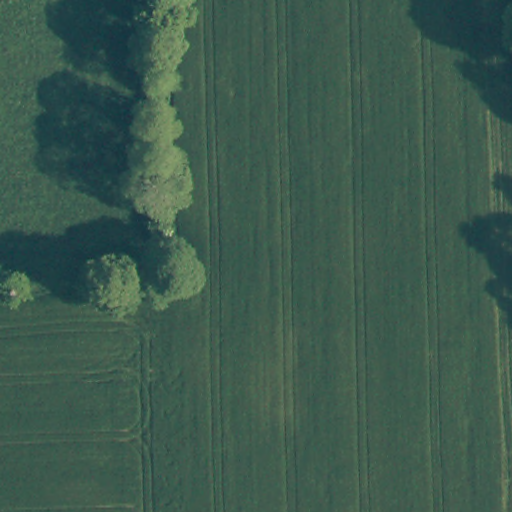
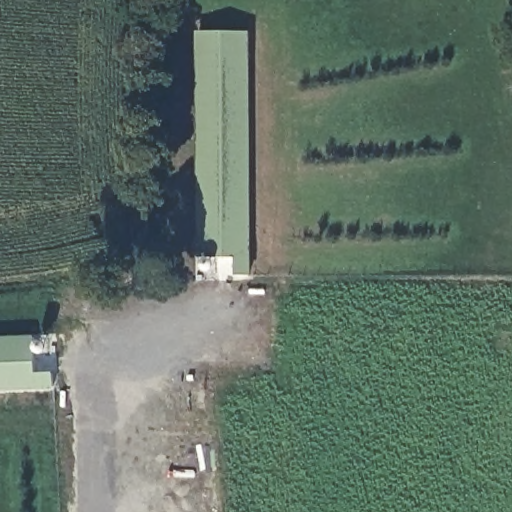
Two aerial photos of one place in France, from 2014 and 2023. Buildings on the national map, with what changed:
new [(198,32),(251,32),(251,275),(235,275),(235,258),(198,257),(198,32)]
new [(53,373),(54,390),(0,392),(0,338),(34,337),(36,373),(53,373)]

